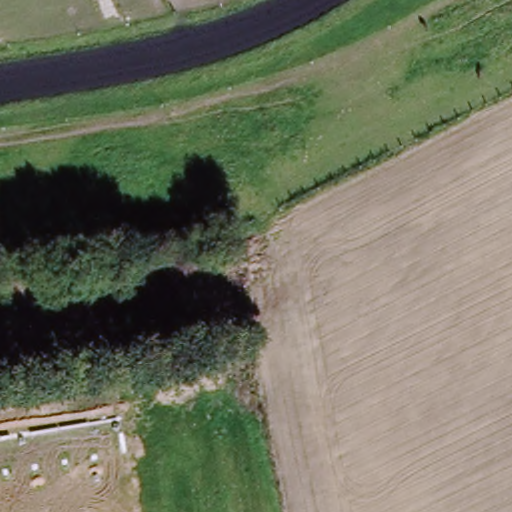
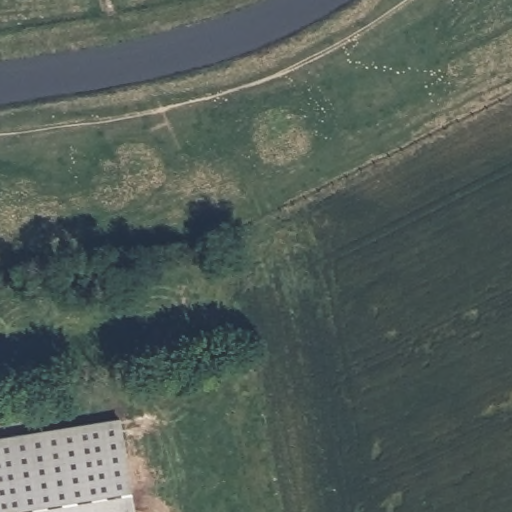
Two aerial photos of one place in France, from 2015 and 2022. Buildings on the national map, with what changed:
new [(137,512),(0,512),(0,438),(121,419),(137,512)]

